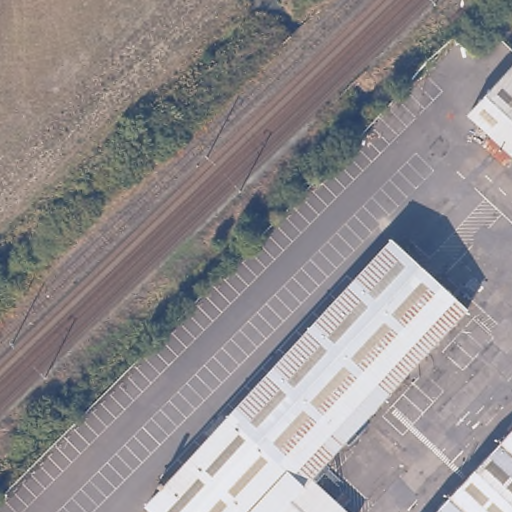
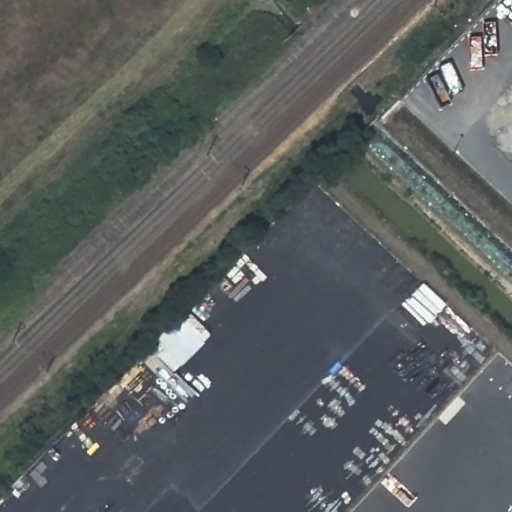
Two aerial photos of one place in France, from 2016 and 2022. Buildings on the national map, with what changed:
demolished [(504,167),(460,127),(512,69),(512,158),(504,167)]
demolished [(314,478),(345,512),(150,512),(146,508),(394,242),(471,311),(314,478)]
demolished [(443,512),(512,437),(512,512),(443,512)]

